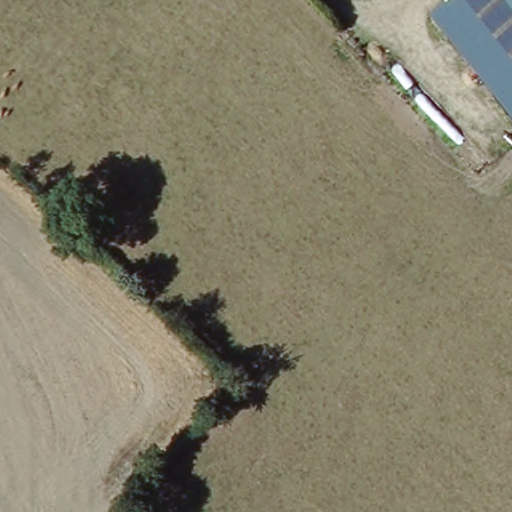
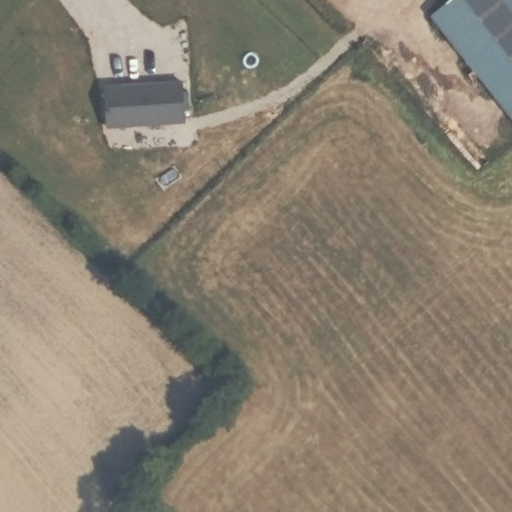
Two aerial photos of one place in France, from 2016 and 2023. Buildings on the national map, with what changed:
unchanged [(453,0),(512,0),(512,106),(437,14),(453,0)]
new [(181,78),(184,121),(106,126),(103,85),(181,78)]

